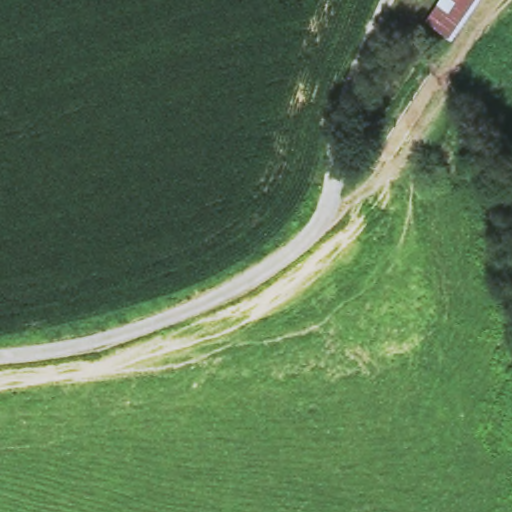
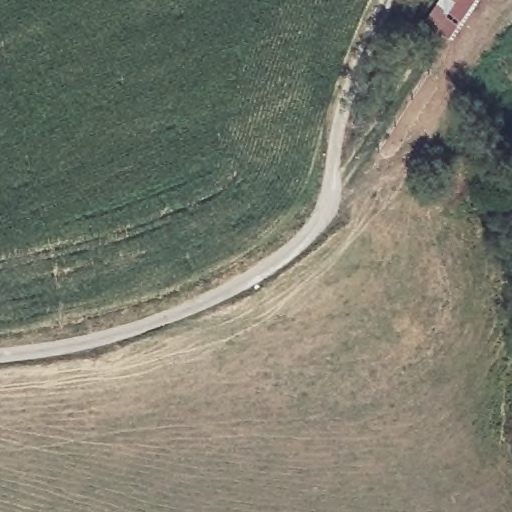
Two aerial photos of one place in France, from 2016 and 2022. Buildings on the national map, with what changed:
unchanged [(455,44),(426,28),(442,0),(484,0),(455,44)]

